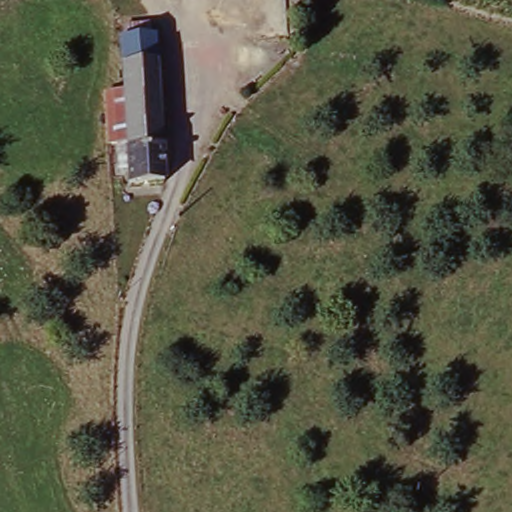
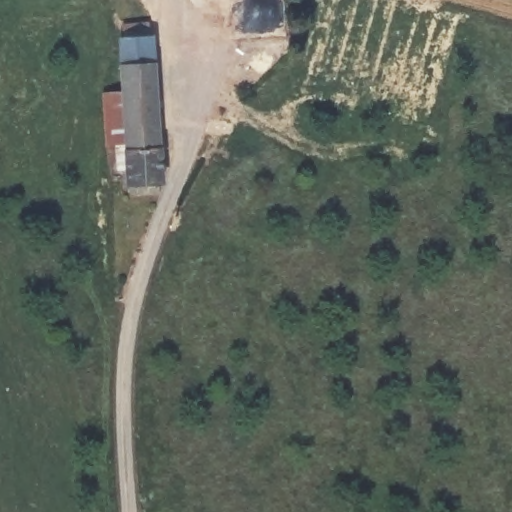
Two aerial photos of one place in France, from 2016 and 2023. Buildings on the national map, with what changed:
unchanged [(158,186),(123,189),(121,173),(111,174),(109,155),(119,154),(115,94),(112,42),(149,40),(158,186)]
unchanged [(119,154),(109,155),(99,156),(95,94),(115,94),(119,154)]

